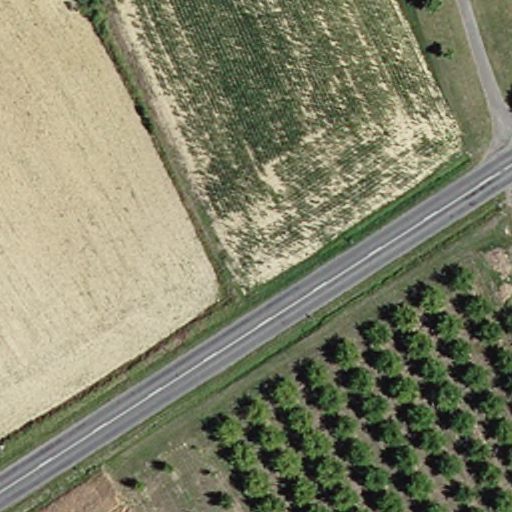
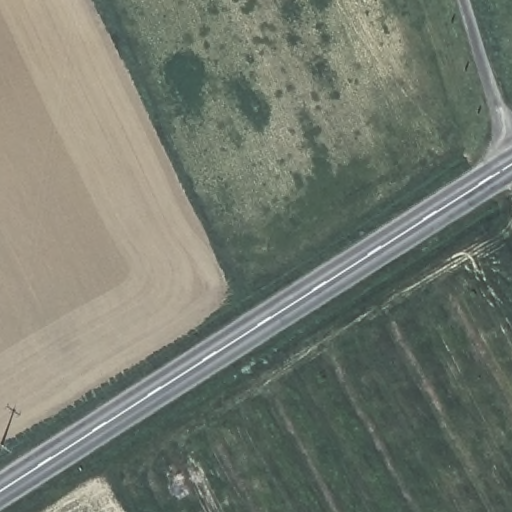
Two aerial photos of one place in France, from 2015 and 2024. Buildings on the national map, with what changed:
[]

